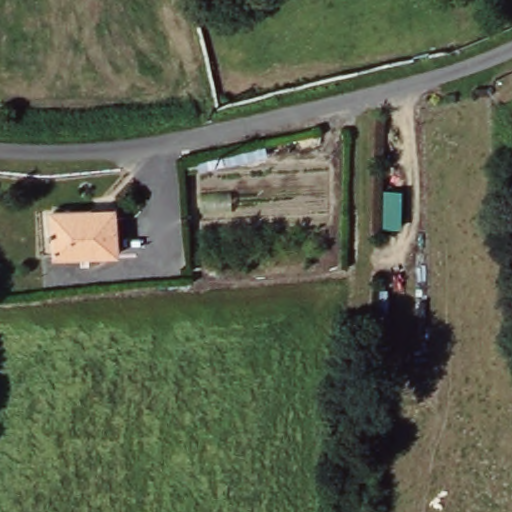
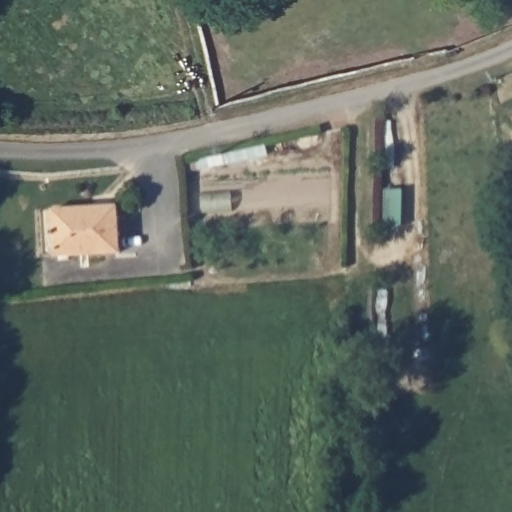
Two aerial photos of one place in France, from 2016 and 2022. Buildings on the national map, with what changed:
unchanged [(114,250),(53,252),(51,206),(111,205),(114,250)]

